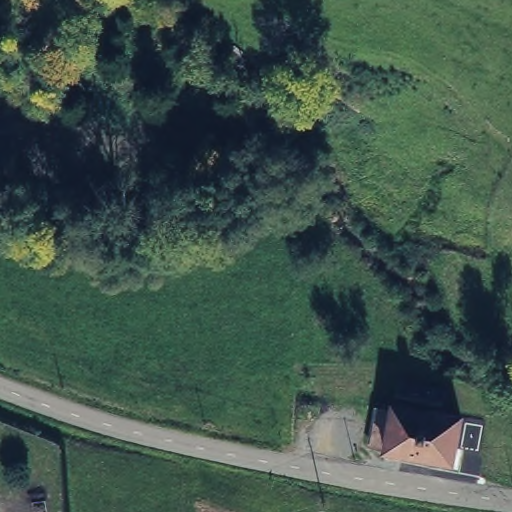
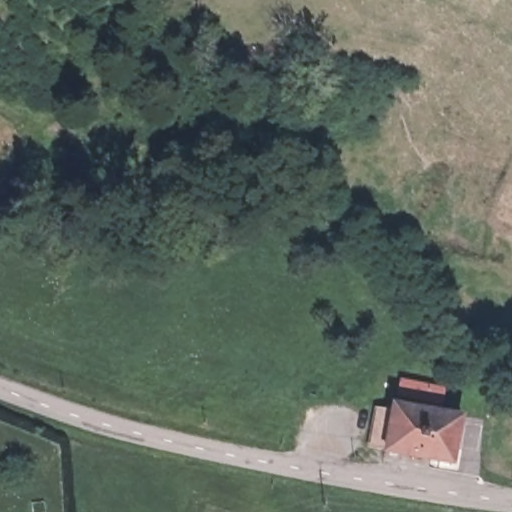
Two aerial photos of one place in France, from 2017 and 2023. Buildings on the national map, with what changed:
unchanged [(448,391),(444,407),(398,397),(402,382),(448,391)]
unchanged [(462,417),(454,461),(387,452),(373,450),(378,413),(395,414),(397,404),(462,417)]

